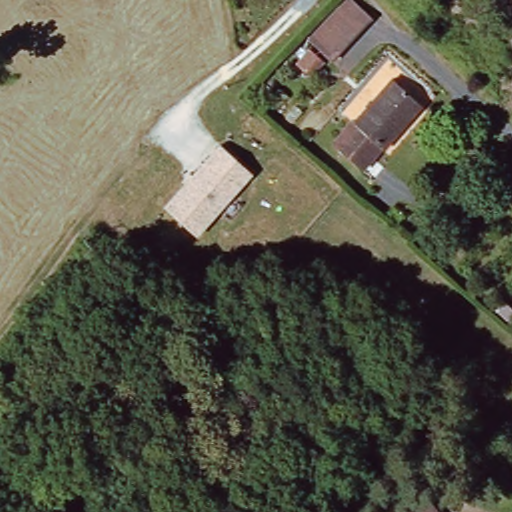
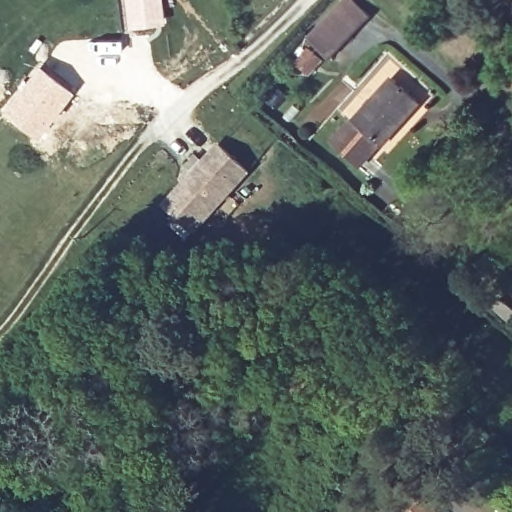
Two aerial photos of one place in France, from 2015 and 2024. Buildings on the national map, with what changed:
new [(166,22),(128,28),(123,0),(163,0),(166,22)]
unchanged [(370,20),(331,66),(309,45),(347,0),(349,0),(370,20)]
new [(39,64),(74,91),(38,137),(0,110),(39,64)]
unchanged [(356,127),(393,87),(418,110),(379,153),(374,153),(357,170),(333,150),(353,125),(356,127)]
unchanged [(219,143),(250,169),(223,201),(191,175),(219,143)]
unchanged [(223,201),(196,233),(164,206),(191,175),(223,201)]
unchanged [(382,493),(395,512),(368,512),(365,507),(382,493)]
unchanged [(368,512),(358,512),(365,507),(368,512)]
unchanged [(435,512),(428,512),(433,508),(435,512)]

